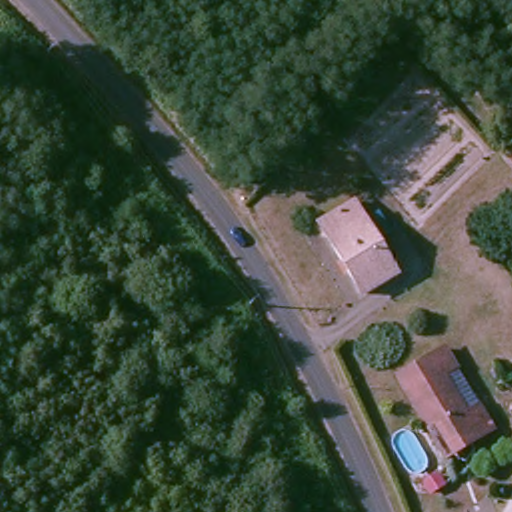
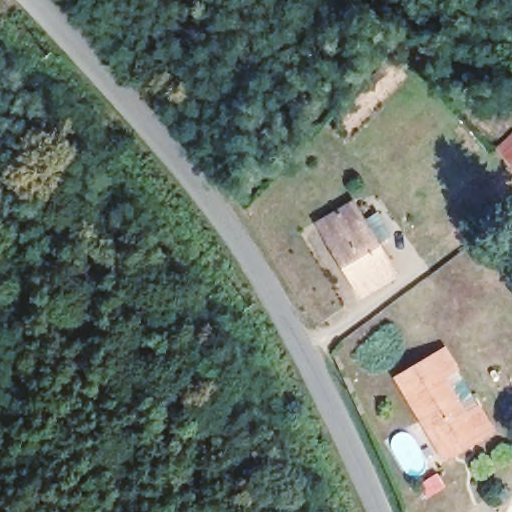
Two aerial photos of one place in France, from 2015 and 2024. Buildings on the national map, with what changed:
new [(497,147),(512,133),(512,163),(497,147)]
unchanged [(319,215),(359,197),(397,281),(386,292),(359,300),(331,241),(319,215)]
unchanged [(452,348),(461,370),(445,376),(408,393),(397,371),(452,348)]
unchanged [(445,376),(464,417),(480,411),(497,439),(481,446),(442,463),(408,393),(445,376)]

